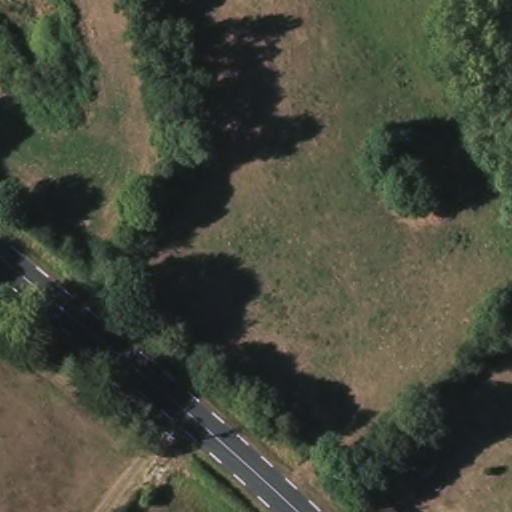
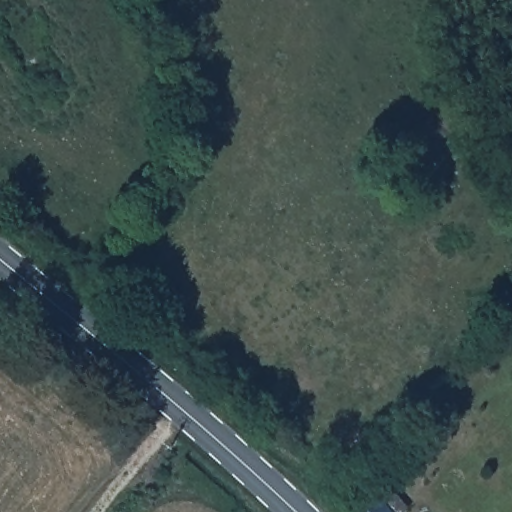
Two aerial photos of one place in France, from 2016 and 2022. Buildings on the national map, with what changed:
unchanged [(408,504),(400,512),(363,512),(389,485),(408,504)]
unchanged [(416,512),(412,512),(414,510),(416,512)]

